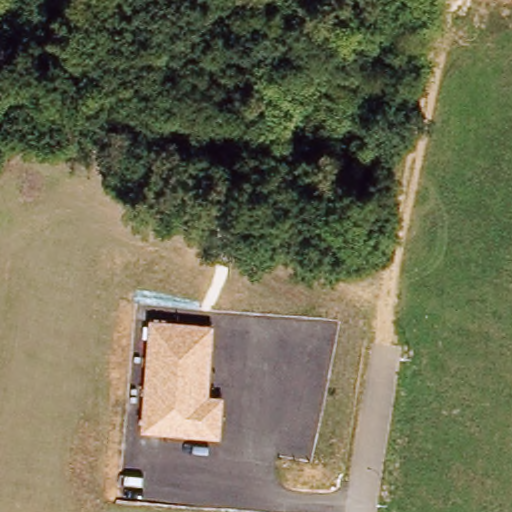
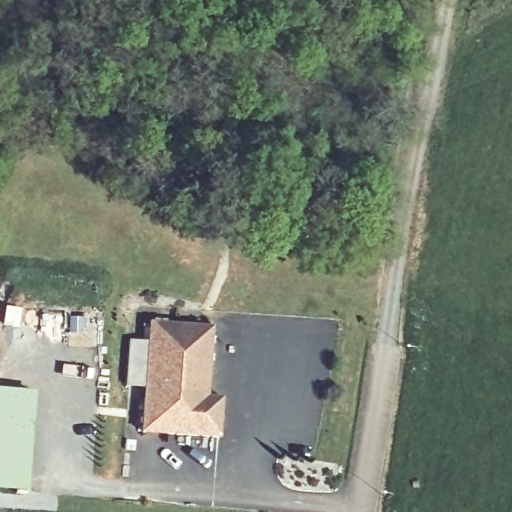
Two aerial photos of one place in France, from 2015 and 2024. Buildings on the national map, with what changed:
unchanged [(209,398),(224,398),(220,437),(142,431),(151,319),(213,324),(209,398)]
new [(0,488),(0,387),(36,390),(30,490),(0,488)]

